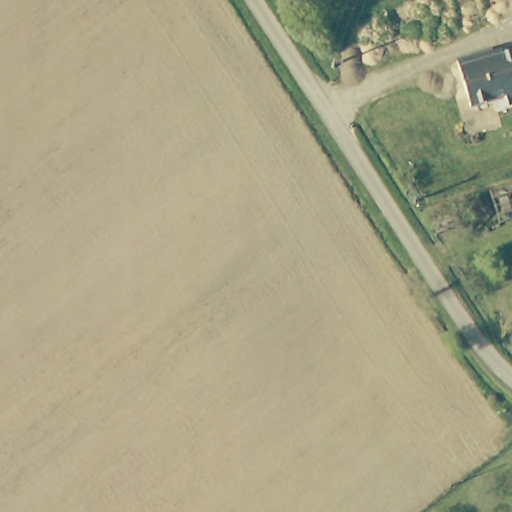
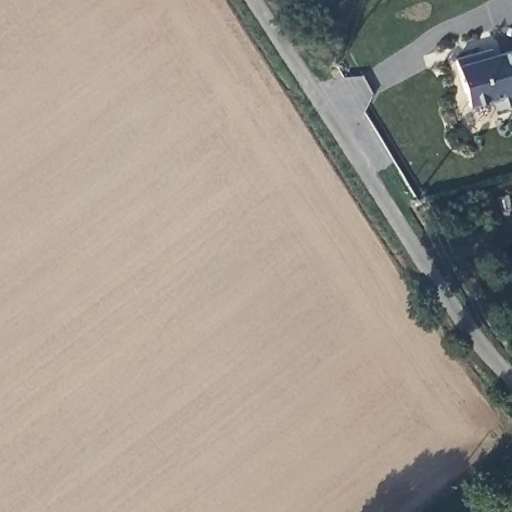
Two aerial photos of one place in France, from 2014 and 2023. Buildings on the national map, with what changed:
unchanged [(493,101),(490,92),(466,99),(451,53),(475,46),(486,43),(488,50),(512,43),(512,95),(493,101)]

